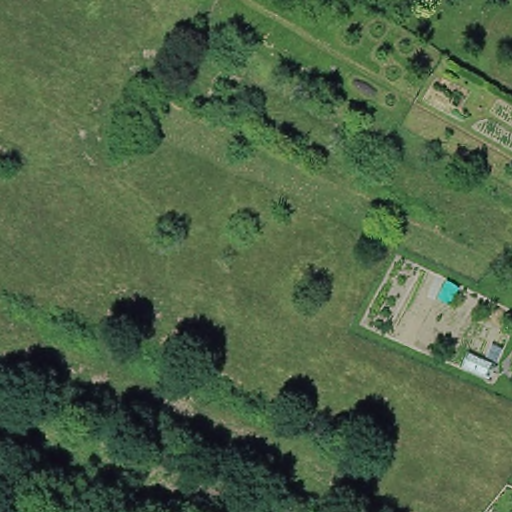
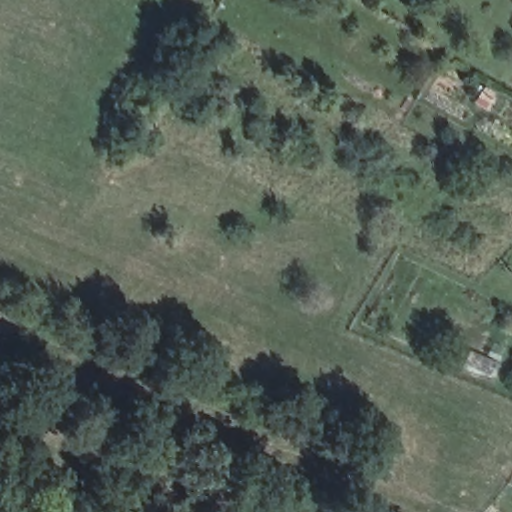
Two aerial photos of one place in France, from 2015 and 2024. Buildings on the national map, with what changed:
unchanged [(509,371),(512,366),(512,374),(509,371)]

